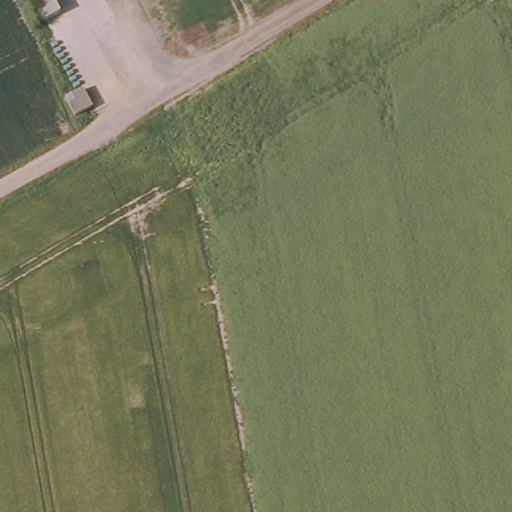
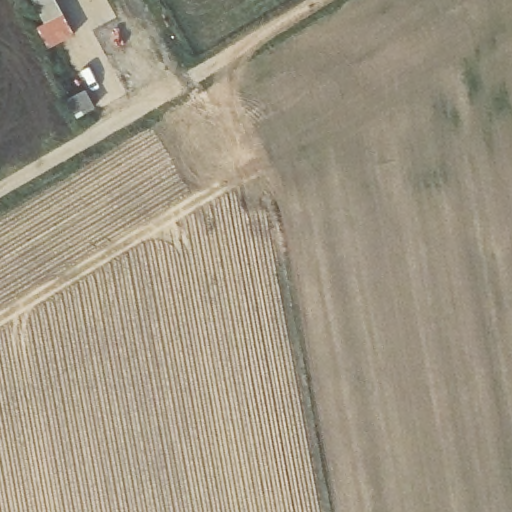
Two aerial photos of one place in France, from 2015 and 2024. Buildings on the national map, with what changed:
unchanged [(47,21),(35,0),(56,0),(62,12),(47,21)]
unchanged [(87,108),(71,117),(61,100),(78,89),(87,108)]

